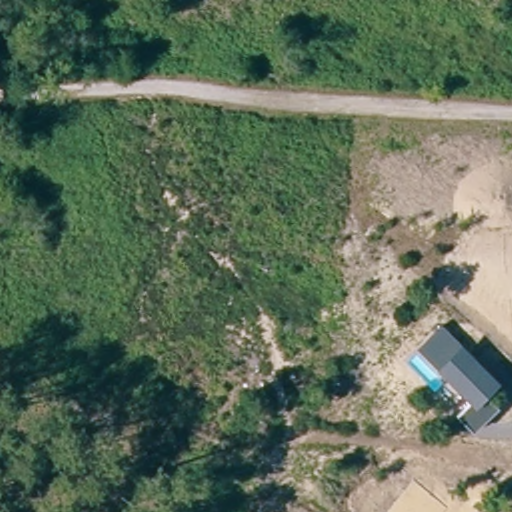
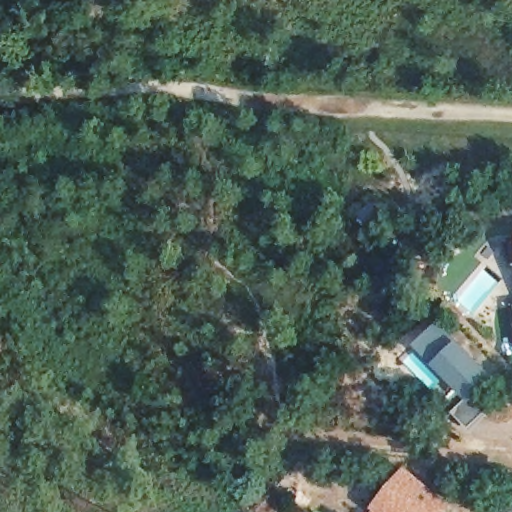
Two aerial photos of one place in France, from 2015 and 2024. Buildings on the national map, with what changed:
new [(508,240),(512,240),(512,263),(508,240)]
unchanged [(415,347),(440,322),(498,382),(486,395),(498,407),(472,432),(457,415),(470,402),(436,369),(415,347)]
new [(407,467),(454,507),(450,512),(375,512),(372,509),(407,467)]

